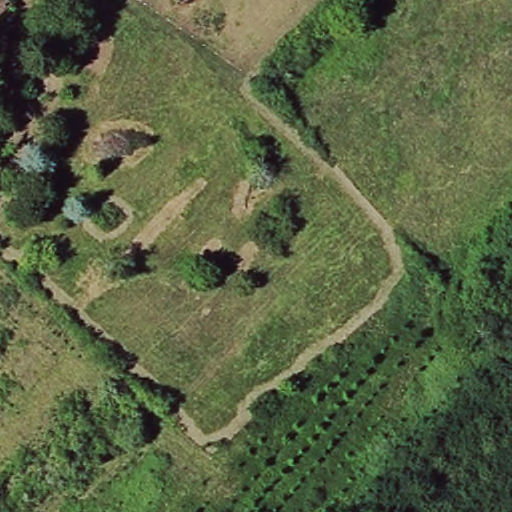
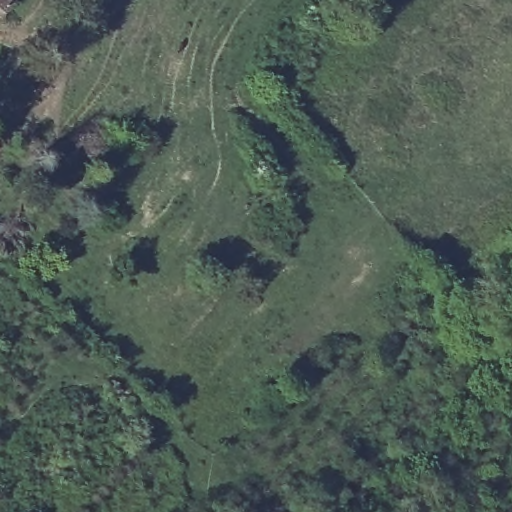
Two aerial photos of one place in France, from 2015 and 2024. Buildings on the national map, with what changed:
unchanged [(17,9),(2,25),(0,24),(0,0),(8,0),(17,9)]

